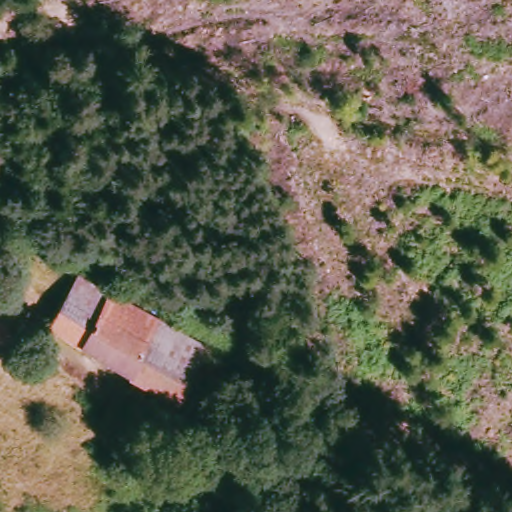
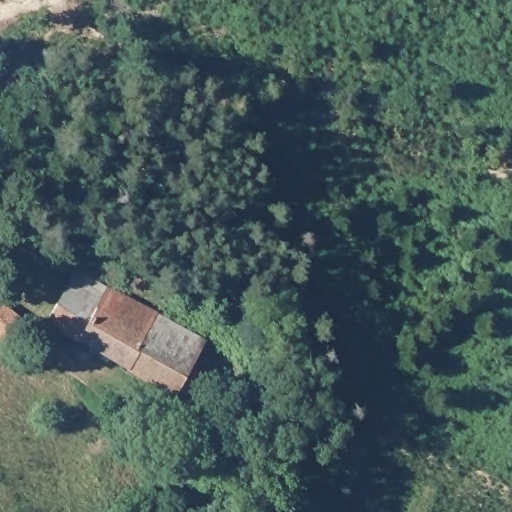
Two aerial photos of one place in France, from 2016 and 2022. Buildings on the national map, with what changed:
unchanged [(106,290),(210,344),(178,402),(98,355),(85,383),(37,355),(47,330),(79,274),(106,290)]
unchanged [(17,320),(2,341),(0,339),(0,307),(17,320)]

